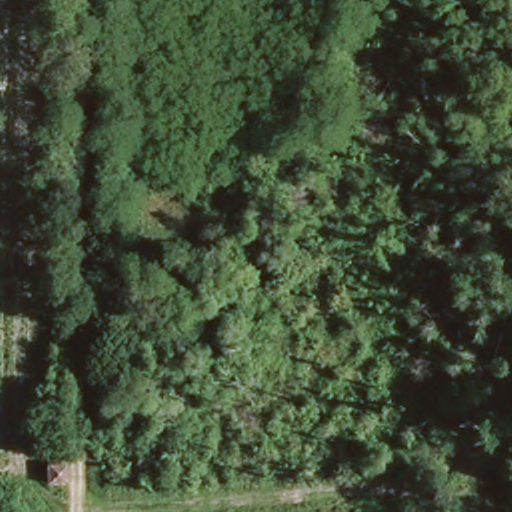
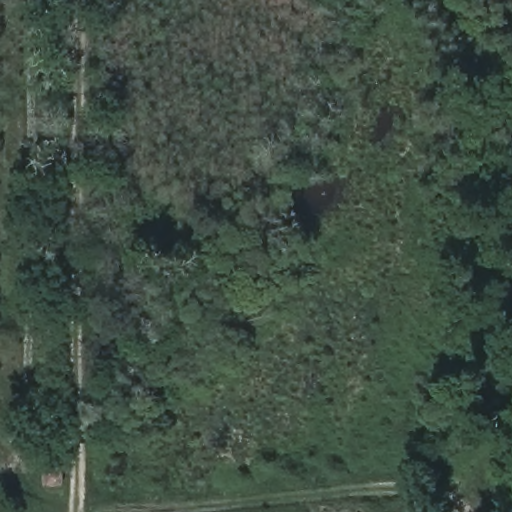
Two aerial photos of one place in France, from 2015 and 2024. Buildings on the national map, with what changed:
unchanged [(48,461),(60,462),(64,462),(64,480),(59,479),(48,479),(48,461)]

